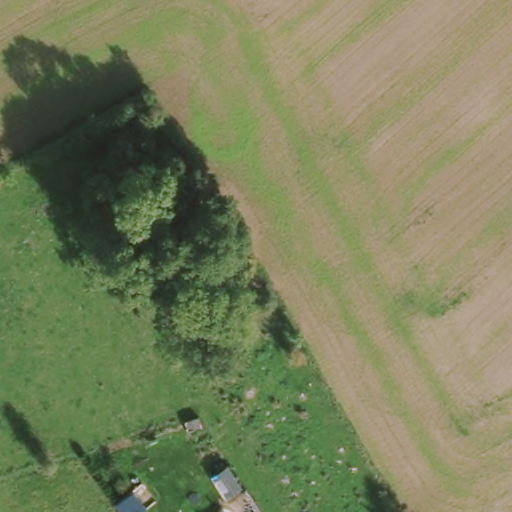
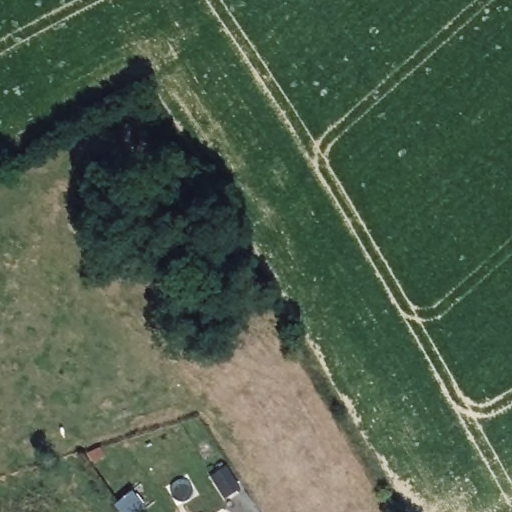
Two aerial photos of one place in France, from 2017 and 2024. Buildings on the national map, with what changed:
unchanged [(225,489),(212,498),(197,476),(212,467),(225,489)]
unchanged [(122,491),(136,510),(133,512),(109,512),(104,505),(122,491)]

